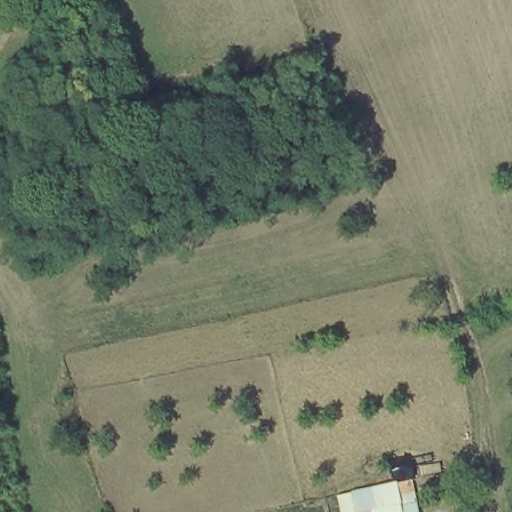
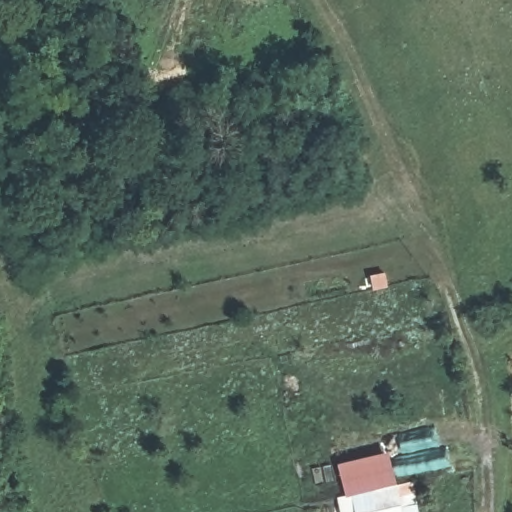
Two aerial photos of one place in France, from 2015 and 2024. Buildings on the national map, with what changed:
new [(339,462),(390,451),(398,484),(348,493),(339,462)]
unchanged [(423,508),(414,512),(342,512),(338,495),(400,484),(403,488),(417,483),(423,508)]

